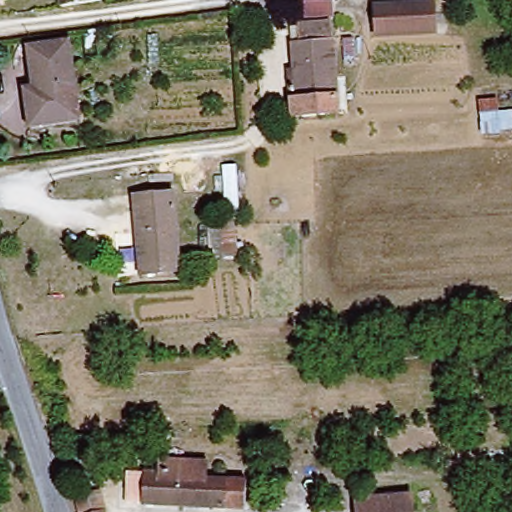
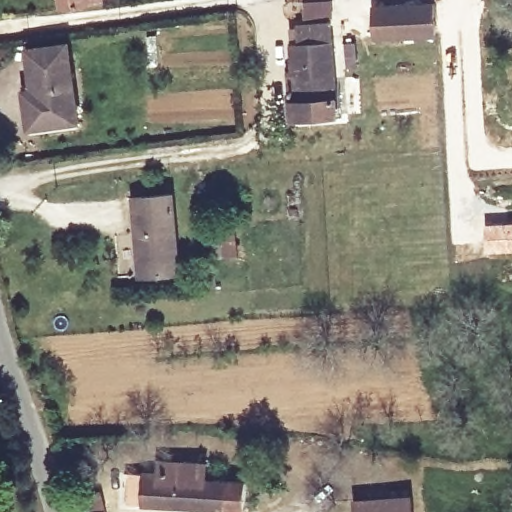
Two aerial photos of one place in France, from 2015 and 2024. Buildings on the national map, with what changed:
unchanged [(80,0),(68,2),(67,0),(80,0)]
unchanged [(446,41),(376,45),(376,16),(445,13),(446,41)]
unchanged [(293,48),(301,46),(300,29),(332,25),(339,98),(342,98),(344,118),(294,121),(291,84),(289,73),(294,73),(293,48)]
unchanged [(70,39),(81,115),(32,123),(26,85),(38,83),(32,44),(70,39)]
unchanged [(179,194),(186,270),(148,273),(141,198),(179,194)]
new [(512,221),(512,252),(484,254),(483,224),(512,221)]
unchanged [(208,480),(248,481),(247,510),(166,506),(126,504),(128,473),(144,474),(145,472),(163,473),(163,461),(209,462),(208,480)]
unchanged [(364,499),(418,495),(419,512),(365,512),(364,499)]
unchanged [(83,505),(107,499),(110,512),(85,512),(83,505)]

